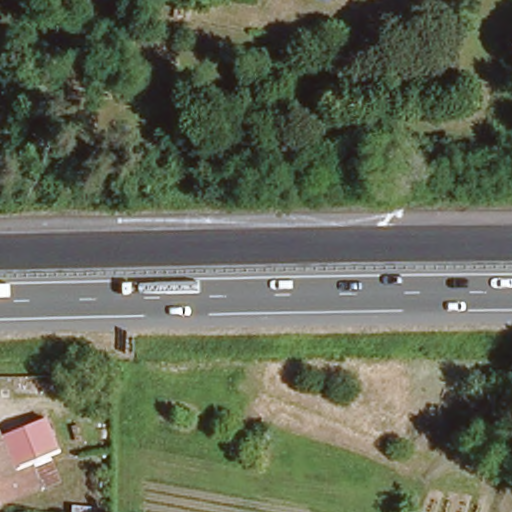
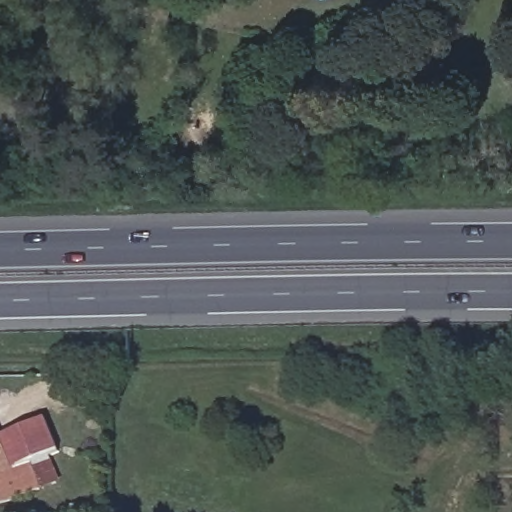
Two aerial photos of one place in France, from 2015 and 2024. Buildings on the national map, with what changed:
unchanged [(39,492),(12,426),(29,420),(31,424),(40,420),(57,462),(46,468),(56,494),(35,504),(32,494),(39,492)]
unchanged [(12,426),(39,492),(32,494),(0,507),(0,431),(12,426)]

